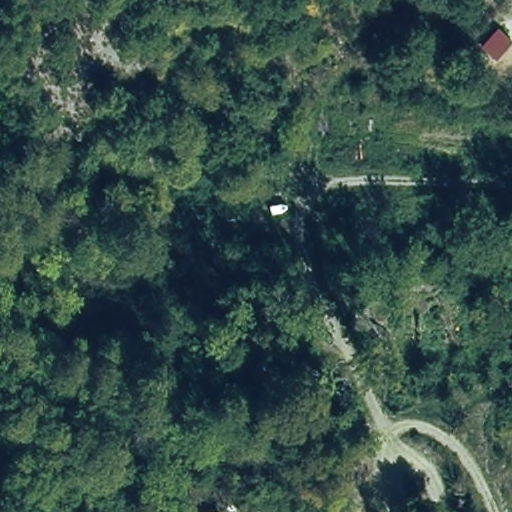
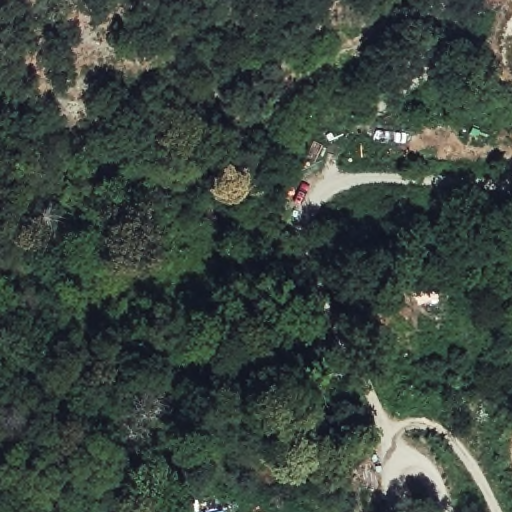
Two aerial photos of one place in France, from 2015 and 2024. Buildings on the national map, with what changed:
unchanged [(512,41),(512,44),(497,60),(482,44),(498,27),(512,41)]

